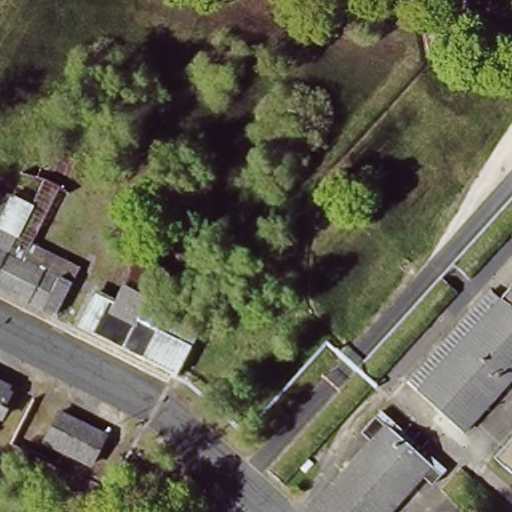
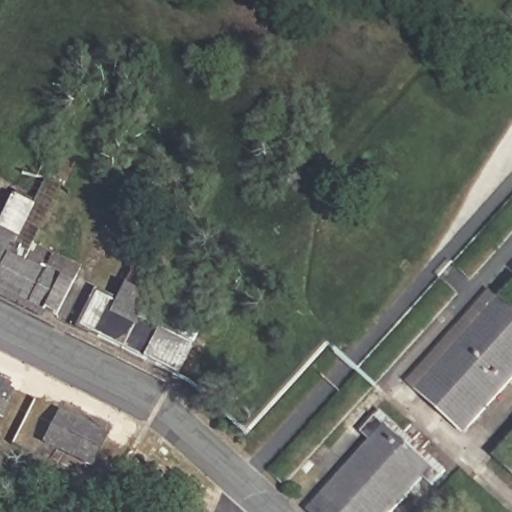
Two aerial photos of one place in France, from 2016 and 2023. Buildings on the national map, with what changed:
unchanged [(30,216),(18,240),(73,268),(50,314),(0,289),(0,201),(30,216)]
unchanged [(268,472),(512,202),(512,235),(285,486),(268,472)]
unchanged [(174,390),(86,342),(110,296),(199,343),(174,390)]
unchanged [(466,431),(416,381),(488,303),(501,317),(512,327),(512,380),(466,431)]
unchanged [(501,317),(512,305),(512,327),(501,317)]
unchanged [(5,401),(0,410),(0,399),(5,401)]
unchanged [(373,442),(362,431),(381,413),(451,475),(433,491),(423,482),(398,512),(309,512),(308,511),(373,442)]
unchanged [(63,420),(103,442),(91,467),(51,444),(63,420)]
unchanged [(512,436),(512,475),(492,457),(512,436)]

